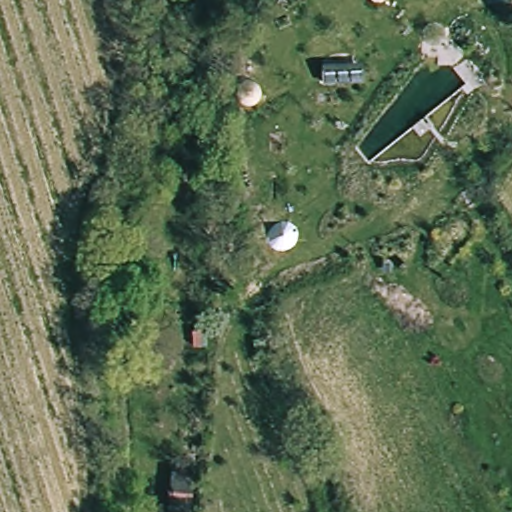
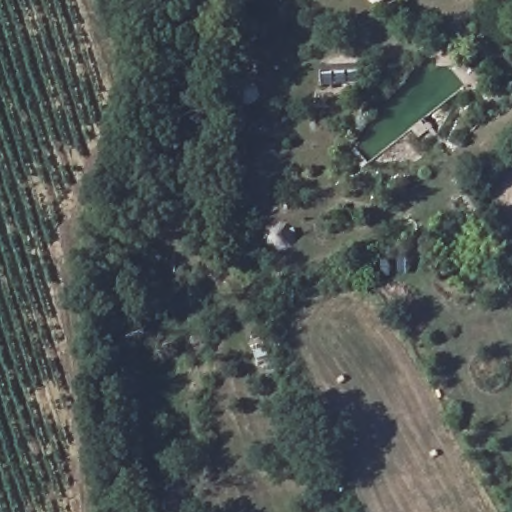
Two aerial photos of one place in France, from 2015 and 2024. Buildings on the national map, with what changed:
unchanged [(322,86),(321,66),(362,64),(362,84),(322,86)]

